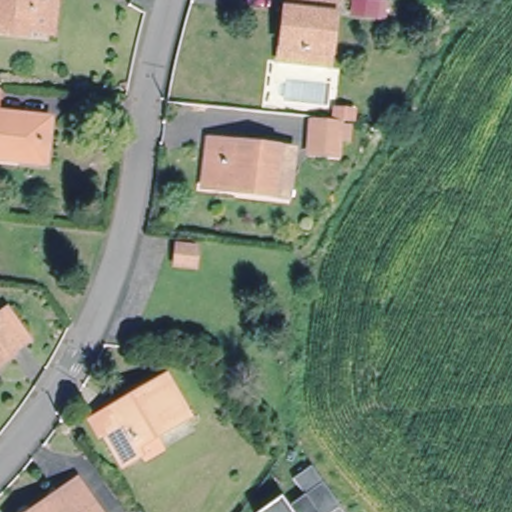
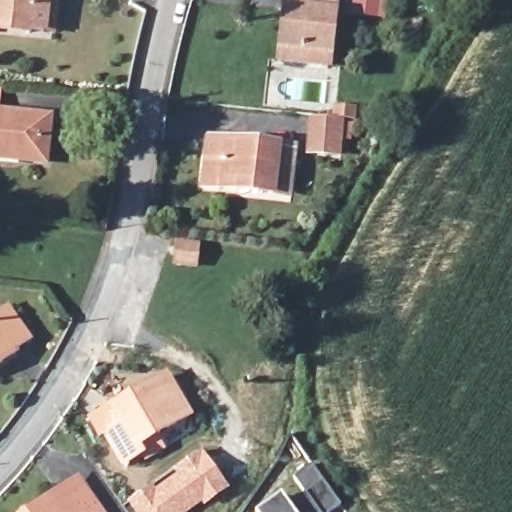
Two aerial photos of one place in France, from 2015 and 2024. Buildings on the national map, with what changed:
unchanged [(42,30),(0,24),(0,0),(54,0),(51,32),(42,30)]
unchanged [(327,60),(273,52),(281,1),(285,1),(285,0),(340,0),(327,60)]
unchanged [(9,154),(0,153),(0,115),(40,120),(34,164),(10,162),(9,154)]
unchanged [(336,136),(347,137),(347,149),(333,148),(333,164),(307,161),(311,125),(337,127),(336,136)]
unchanged [(291,158),(285,199),(272,196),(202,186),(210,139),(278,151),(292,152),(291,158)]
unchanged [(197,275),(172,272),(175,250),(200,252),(197,275)]
unchanged [(7,349),(10,357),(0,363),(0,313),(2,312),(22,340),(7,349)]
unchanged [(89,408),(113,395),(171,365),(187,404),(136,432),(137,443),(119,450),(105,421),(97,423),(89,408)]
new [(229,489),(203,507),(201,505),(192,512),(134,512),(127,503),(202,450),(229,489)]
unchanged [(290,508),(301,500),(307,497),(296,480),(313,468),(342,509),(337,512),(260,512),(282,497),(290,508)]
unchanged [(105,510),(106,512),(32,512),(81,475),(105,510)]

